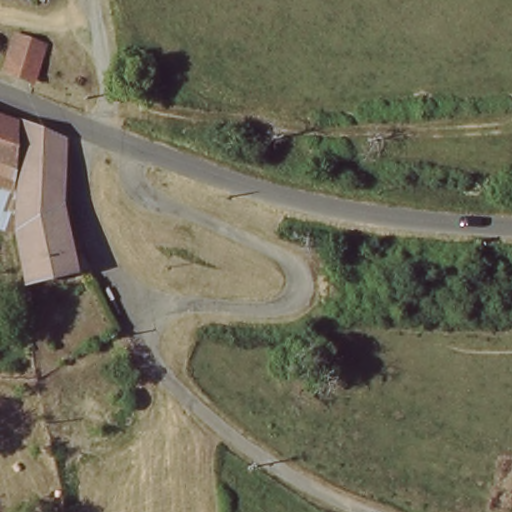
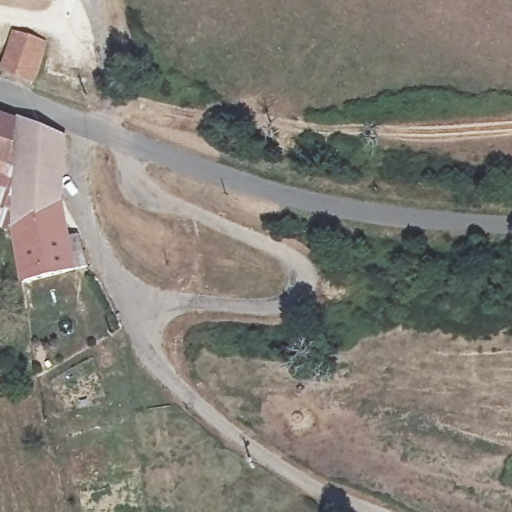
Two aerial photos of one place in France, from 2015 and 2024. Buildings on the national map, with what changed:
unchanged [(38,1),(37,0),(38,0),(38,1)]
unchanged [(12,77),(0,72),(12,38),(42,47),(30,84),(12,77)]
unchanged [(0,224),(0,159),(0,115),(15,121),(13,164),(9,228),(0,224)]
unchanged [(20,119),(58,134),(60,158),(19,157),(20,119)]
unchanged [(25,313),(20,282),(23,281),(17,249),(14,228),(17,204),(19,157),(60,158),(60,176),(57,203),(65,234),(78,232),(85,258),(90,272),(30,280),(35,311),(25,313)]

